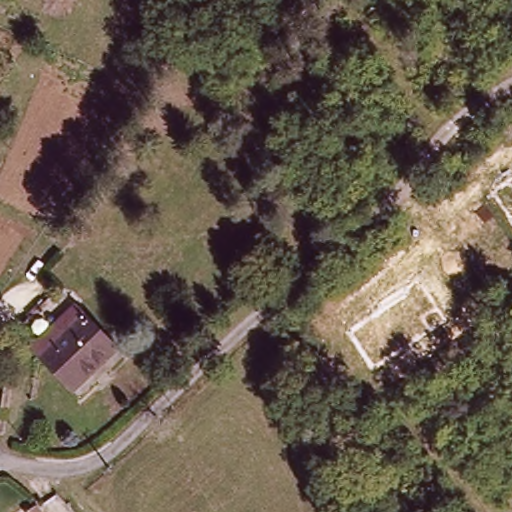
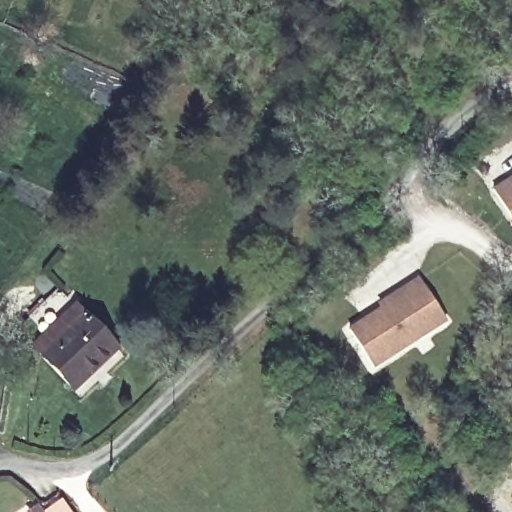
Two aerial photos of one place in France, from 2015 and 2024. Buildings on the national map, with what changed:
new [(491,189),(512,176),(512,223),(491,189)]
new [(350,330),(382,310),(379,305),(420,279),(447,324),(373,369),(350,330)]
unchanged [(66,307),(126,368),(85,409),(25,348),(66,307)]
unchanged [(67,512),(50,512),(61,504),(67,512)]
unchanged [(36,512),(31,512),(35,510),(36,512)]

